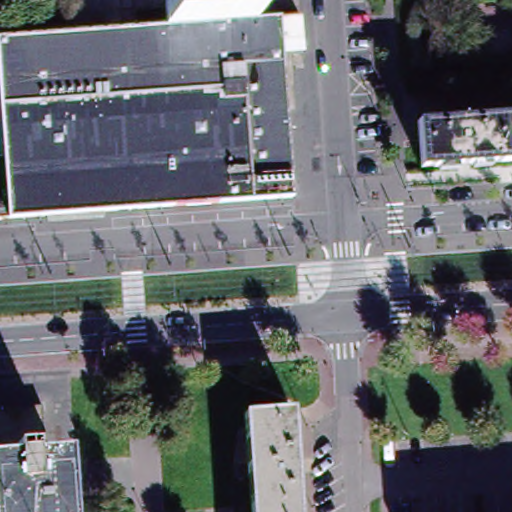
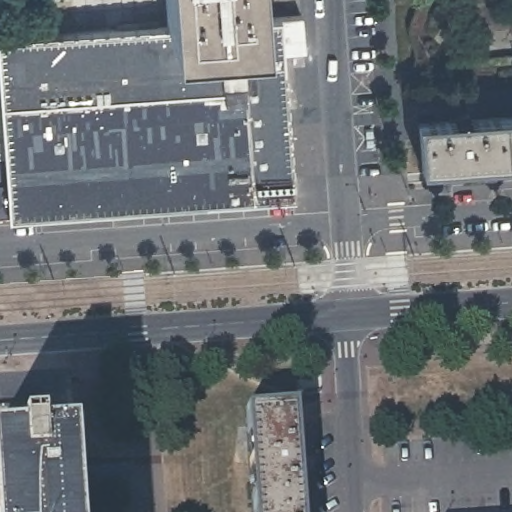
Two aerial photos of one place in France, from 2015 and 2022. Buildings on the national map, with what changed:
unchanged [(257,20),(182,26),(166,27),(163,0),(255,0),(257,20)]
unchanged [(182,26),(257,20),(279,19),(298,17),(302,55),(282,56),(292,197),(10,218),(5,159),(0,94),(0,39),(68,34),(166,27),(182,26)]
unchanged [(467,114),(468,119),(512,116),(512,162),(422,168),(420,123),(456,120),(456,115),(467,114)]
unchanged [(0,159),(5,159),(10,218),(0,219),(0,159)]
unchanged [(31,407),(36,406),(42,406),(45,461),(0,463),(0,409),(5,409),(31,407)]
unchanged [(292,411),(296,461),(301,461),(302,474),(297,475),(299,512),(252,512),(245,414),(292,411)]
unchanged [(46,464),(56,463),(60,512),(0,512),(0,463),(45,461),(46,464)]

